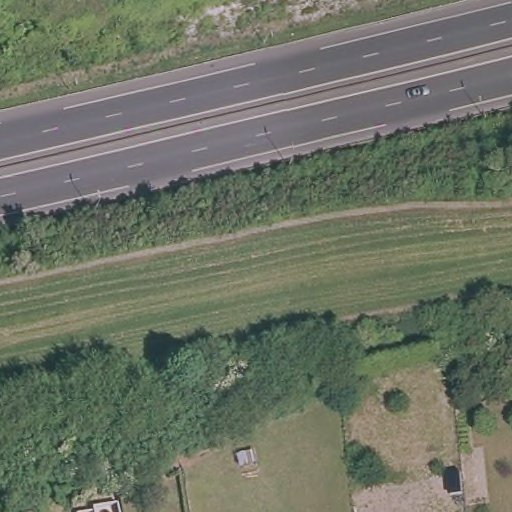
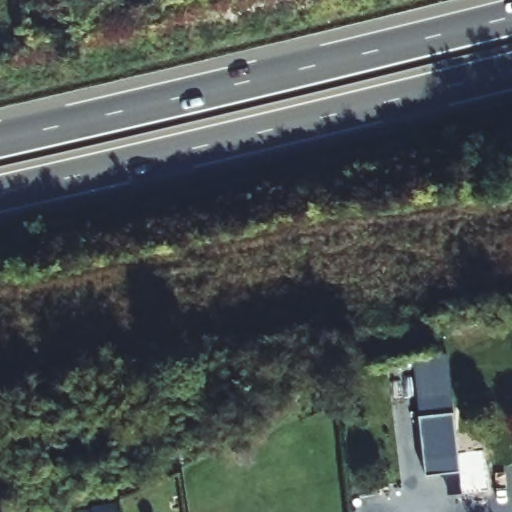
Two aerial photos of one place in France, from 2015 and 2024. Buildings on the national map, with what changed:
new [(416,399),(414,358),(447,355),(450,394),(416,399)]
new [(416,399),(450,394),(460,471),(427,475),(416,399)]
unchanged [(92,508),(117,505),(118,512),(92,512),(92,508)]

